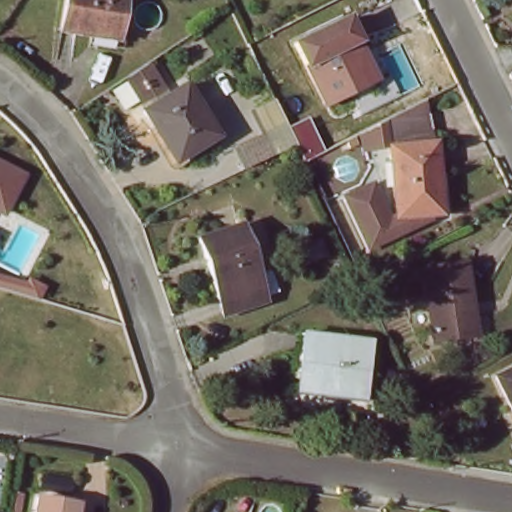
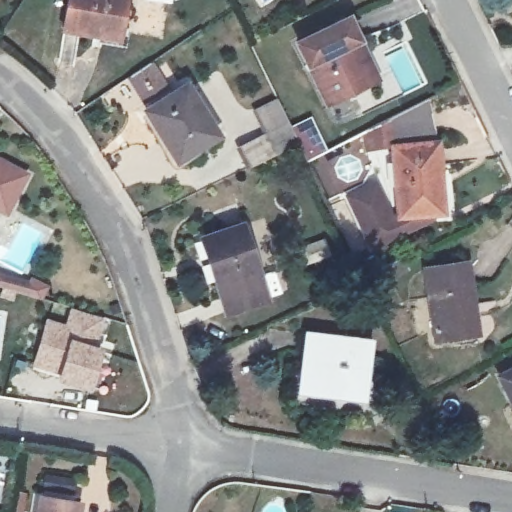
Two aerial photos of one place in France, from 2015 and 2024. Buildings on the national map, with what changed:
unchanged [(130,27),(126,47),(94,41),(95,33),(63,27),(67,0),(126,0),(121,26),(130,27)]
unchanged [(345,41),(303,59),(295,43),(360,19),(388,78),(365,88),(345,41)]
unchanged [(365,88),(324,109),(303,59),(345,41),(365,88)]
unchanged [(174,166),(143,108),(125,79),(152,64),(165,91),(189,77),(222,136),(174,166)]
unchanged [(311,148),(260,173),(243,146),(267,133),(255,111),(285,96),(311,148)]
unchanged [(434,103),(441,217),(396,220),(394,194),(390,124),(434,103)]
unchanged [(18,216),(0,208),(0,159),(37,179),(18,216)]
unchanged [(375,255),(352,197),(384,180),(394,194),(396,220),(441,217),(375,255)]
unchanged [(269,301),(227,318),(199,243),(241,227),(269,301)]
unchanged [(3,238),(0,243),(0,236),(3,238)]
unchanged [(468,337),(434,341),(422,266),(466,262),(472,305),(477,336),(468,337)]
new [(67,328),(73,308),(102,317),(92,349),(101,351),(88,387),(60,377),(62,372),(35,364),(48,322),(67,328)]
unchanged [(369,347),(366,369),(360,368),(357,390),(347,388),(346,398),(306,392),(308,379),(302,378),(308,338),(369,347)]
unchanged [(512,365),(512,402),(497,372),(512,365)]
unchanged [(38,495),(79,502),(77,512),(35,512),(38,495)]

